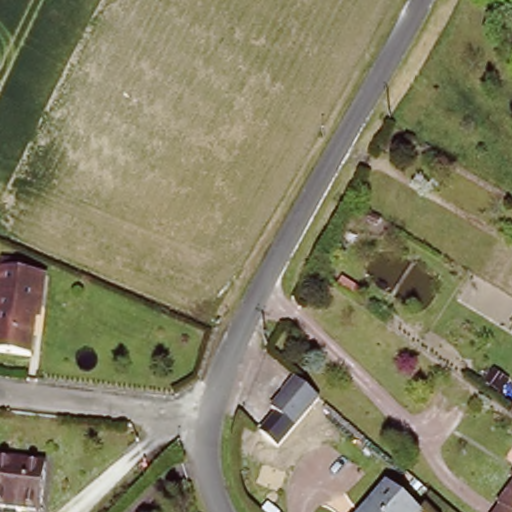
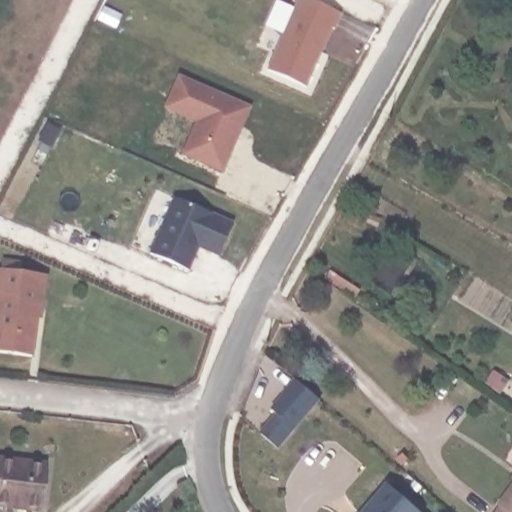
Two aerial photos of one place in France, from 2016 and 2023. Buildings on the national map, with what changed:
new [(337,31),(333,29),(310,87),(267,71),(297,0),(314,0),(345,14),(337,31)]
new [(225,175),(183,157),(197,124),(165,111),(180,75),(253,107),(225,175)]
new [(222,257),(200,249),(193,271),(151,255),(175,198),(235,222),(222,257)]
unchanged [(42,307),(38,306),(32,359),(0,355),(0,274),(2,274),(4,263),(22,265),(20,276),(46,279),(42,307)]
unchanged [(310,405),(287,429),(270,415),(292,388),(310,405)]
unchanged [(45,512),(0,512),(0,468),(50,472),(45,512)]
unchanged [(417,512),(366,512),(388,487),(417,512)]
unchanged [(501,509),(512,495),(512,512),(503,512),(503,511),(501,509)]

